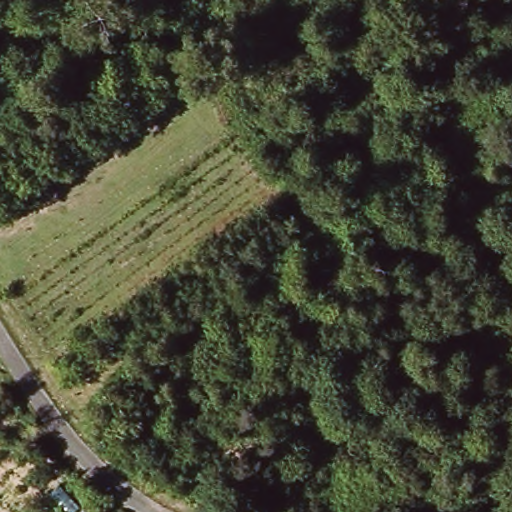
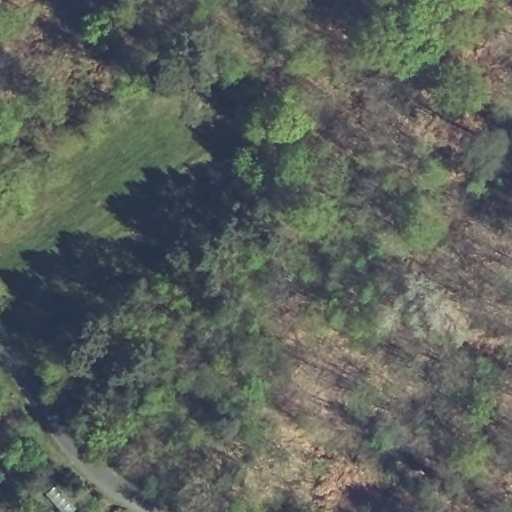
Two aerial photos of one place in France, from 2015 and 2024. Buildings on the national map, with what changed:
unchanged [(110,512),(107,512),(108,511),(110,512)]

